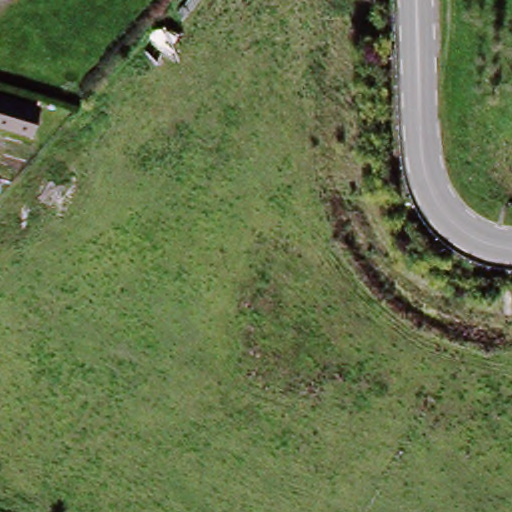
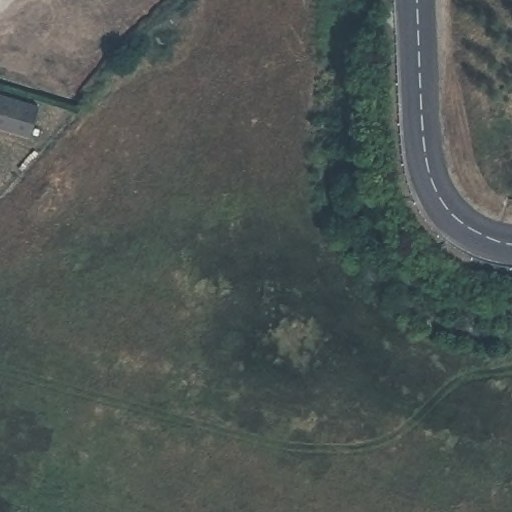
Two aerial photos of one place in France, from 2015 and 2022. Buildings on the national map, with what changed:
unchanged [(0,134),(0,103),(33,114),(24,143),(0,134)]

